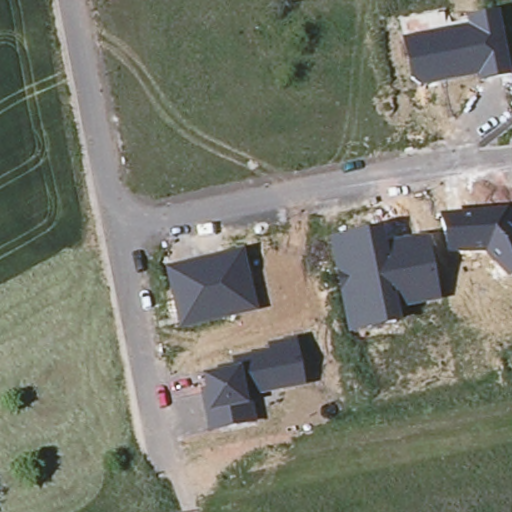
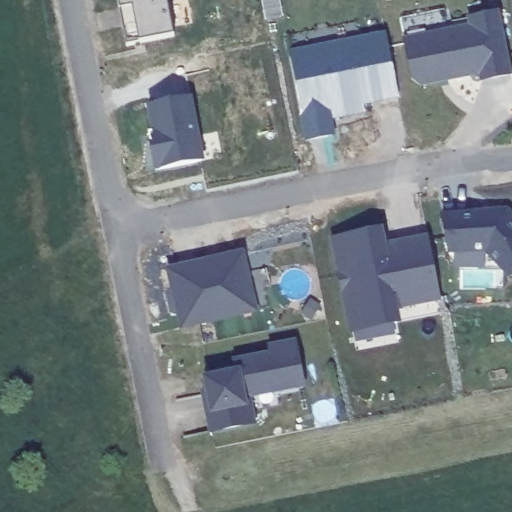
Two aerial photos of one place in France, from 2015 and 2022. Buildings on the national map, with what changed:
new [(172,34),(124,43),(115,0),(169,0),(176,33),(172,34)]
unchanged [(511,0),(512,0),(512,3),(511,0)]
unchanged [(410,80),(402,41),(468,28),(467,16),(500,11),(512,72),(512,75),(481,82),(480,74),(421,87),(410,80)]
new [(364,106),(365,113),(332,119),(336,136),(305,141),(290,52),(385,33),(399,99),(364,106)]
new [(207,162),(159,169),(146,102),(194,94),(207,162)]
unchanged [(440,217),(508,210),(512,214),(512,278),(507,279),(484,254),(447,256),(440,217)]
unchanged [(329,240),(390,224),(395,243),(427,237),(440,299),(402,308),(404,324),(350,334),(329,240)]
unchanged [(167,271),(245,250),(257,309),(180,327),(167,271)]
unchanged [(200,392),(207,390),(204,376),(232,370),(230,363),(268,355),(267,348),(298,343),(306,386),(250,399),(251,407),(255,425),(209,436),(200,392)]

